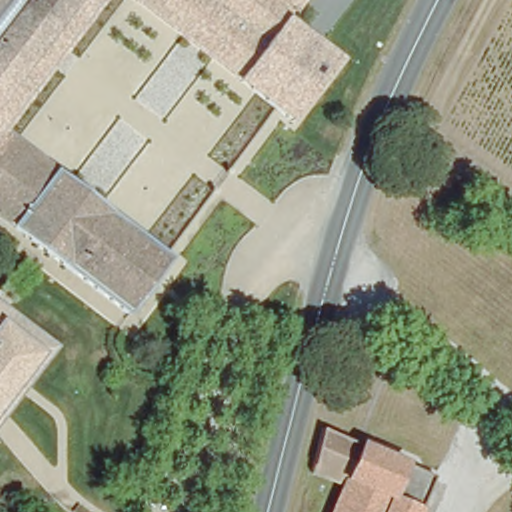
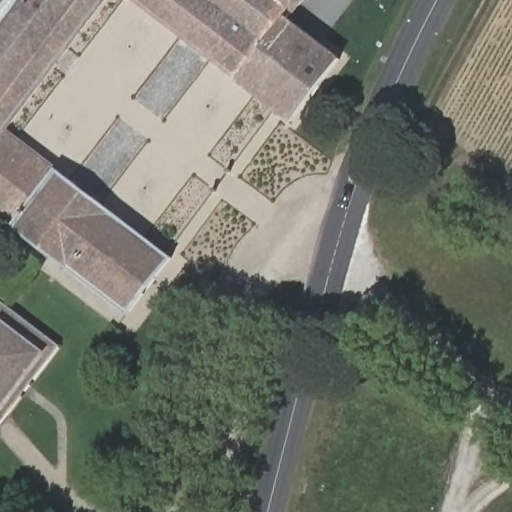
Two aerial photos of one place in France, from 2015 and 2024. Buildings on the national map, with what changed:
unchanged [(102,0),(7,123),(57,161),(55,164),(172,254),(129,309),(14,219),(12,222),(0,213),(0,0),(102,0)]
unchanged [(342,54),(292,118),(140,0),(294,0),(287,10),(342,54)]
unchanged [(51,348),(46,354),(0,319),(0,308),(51,348)]
unchanged [(46,354),(0,413),(0,319),(46,354)]
demolished [(317,428),(318,423),(431,472),(413,512),(324,512),(338,481),(307,467),(317,428)]

